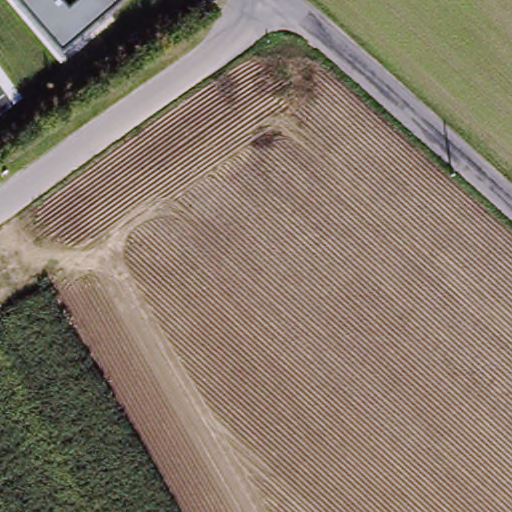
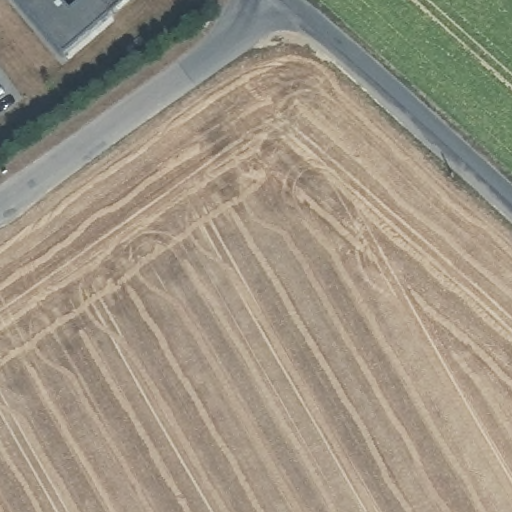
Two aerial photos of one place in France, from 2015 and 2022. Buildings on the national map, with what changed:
unchanged [(60,53),(18,0),(121,0),(60,53)]

